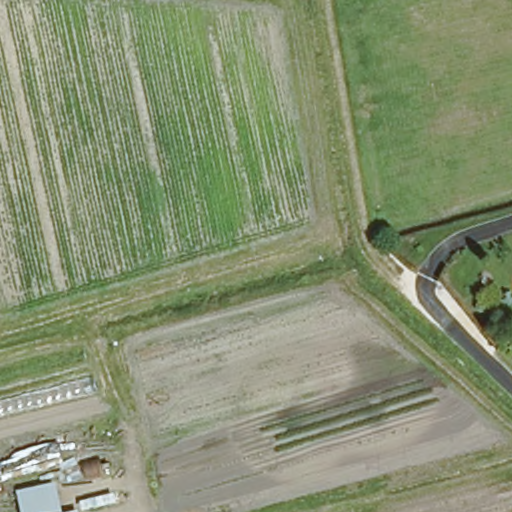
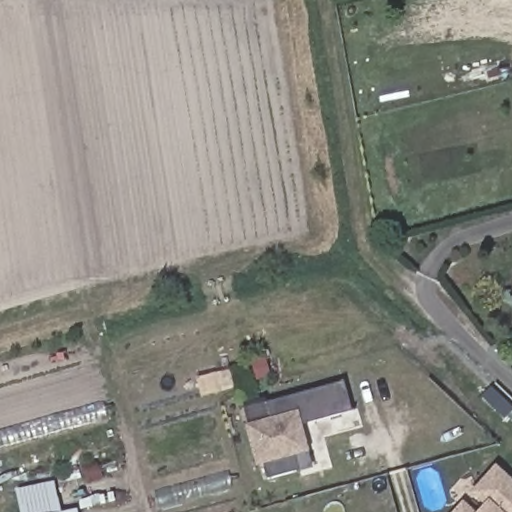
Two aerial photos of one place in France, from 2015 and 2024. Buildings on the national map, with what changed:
new [(267,479),(264,465),(256,466),(246,424),(273,417),(269,402),(343,382),(351,411),(303,424),(309,451),(313,468),(267,479)]
new [(470,492),(495,464),(512,479),(512,512),(477,512),(483,505),(470,492)]
unchanged [(59,480),(68,510),(81,506),(82,512),(31,512),(26,490),(59,480)]
new [(451,512),(462,500),(476,512),(451,512)]

